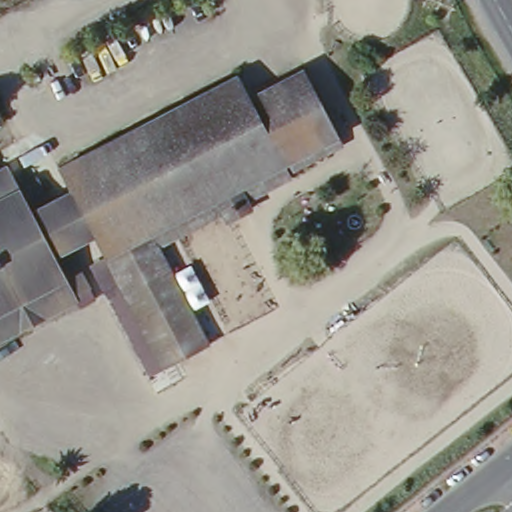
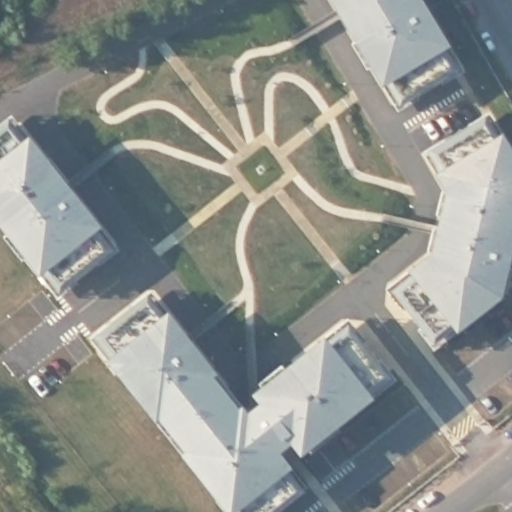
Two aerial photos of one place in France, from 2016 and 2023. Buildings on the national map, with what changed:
new [(459,63),(391,103),(330,0),(423,0),(459,63)]
demolished [(243,88),(302,61),(342,144),(252,195),(257,205),(224,220),(220,211),(164,243),(211,340),(159,370),(54,161),(234,68),(243,88)]
new [(512,268),(506,291),(432,353),(383,291),(430,245),(440,185),(420,151),(488,106),(512,143),(512,268)]
new [(1,111),(119,255),(50,305),(0,240),(0,112),(1,111)]
demolished [(92,237),(58,255),(77,295),(0,337),(0,166),(0,165),(25,206),(67,187),(92,237)]
new [(240,412),(251,404),(244,394),(351,312),(408,384),(289,474),(305,489),(276,512),(213,512),(68,325),(135,275),(240,412)]

